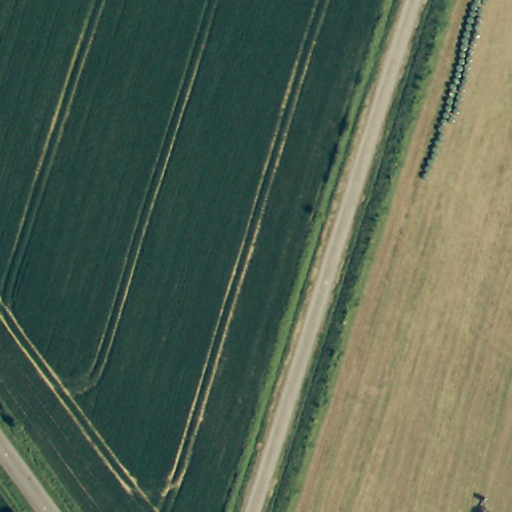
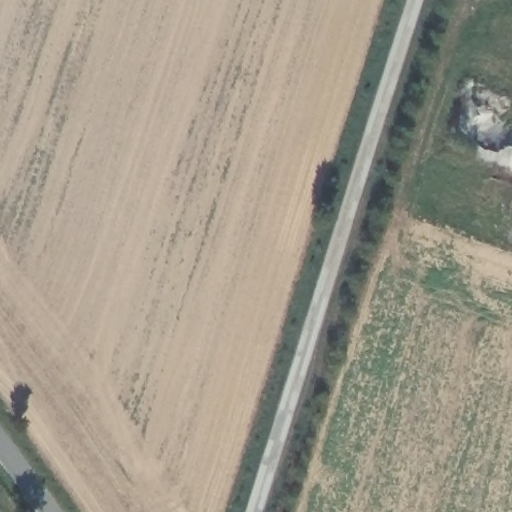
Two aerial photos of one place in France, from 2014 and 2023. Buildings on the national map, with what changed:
[]

